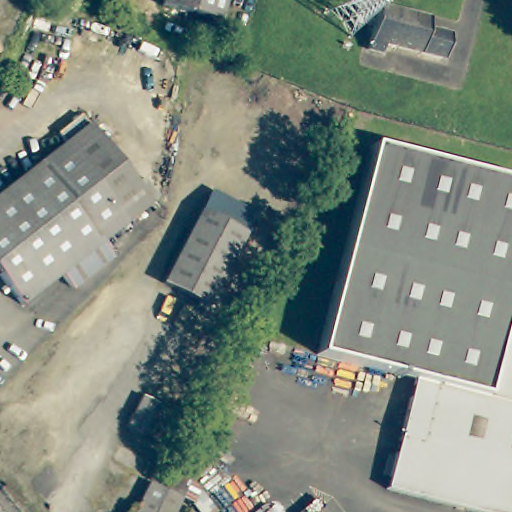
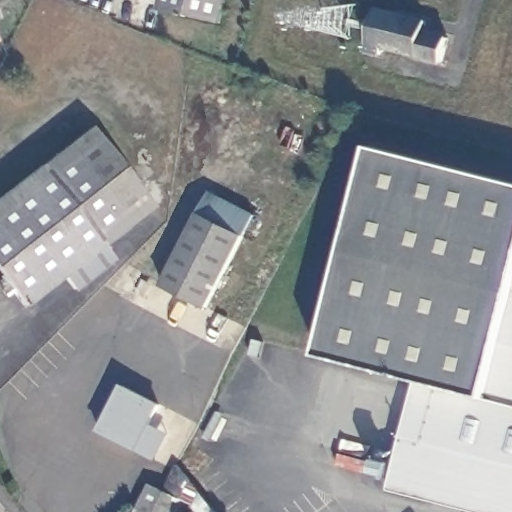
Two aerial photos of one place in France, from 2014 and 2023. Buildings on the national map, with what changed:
unchanged [(161,6),(163,0),(225,0),(220,21),(161,6)]
unchanged [(429,19),(426,30),(449,36),(443,60),(384,46),(382,55),(367,51),(378,7),(429,19)]
unchanged [(21,305),(0,278),(0,195),(88,128),(149,206),(21,305)]
unchanged [(378,144),(512,179),(512,512),(482,512),(393,489),(414,404),(420,379),(325,356),(378,144)]
unchanged [(249,237),(213,305),(169,283),(206,214),(249,237)]
new [(99,431),(122,383),(161,403),(151,425),(169,433),(155,461),(99,431)]
demolished [(158,406),(143,433),(128,425),(143,398),(158,406)]
unchanged [(194,504),(183,499),(177,512),(138,512),(150,484),(165,490),(178,463),(201,491),(217,512),(200,512),(194,504)]

